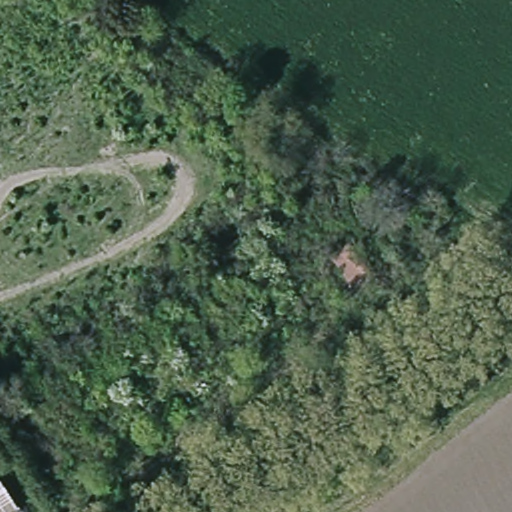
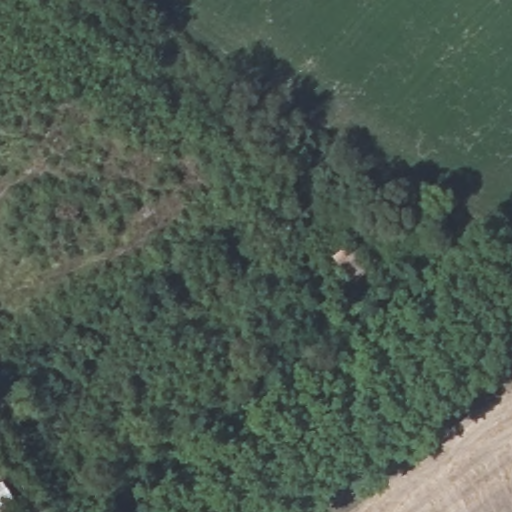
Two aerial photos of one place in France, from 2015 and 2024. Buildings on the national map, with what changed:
unchanged [(347,290),(330,263),(348,251),(366,277),(347,290)]
unchanged [(0,512),(0,487),(17,511),(15,512),(0,512)]

